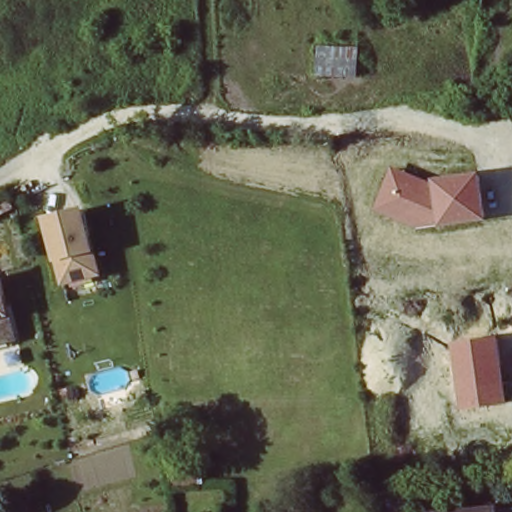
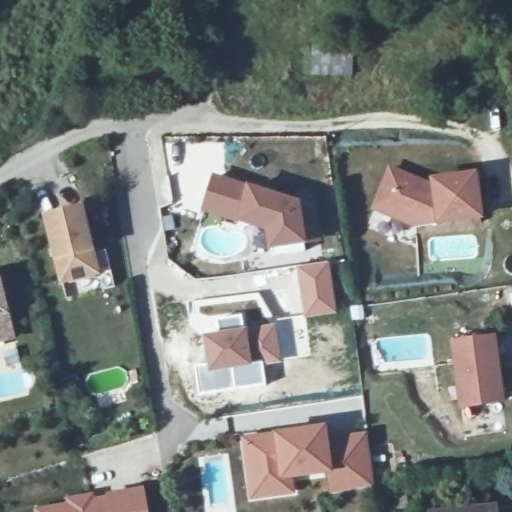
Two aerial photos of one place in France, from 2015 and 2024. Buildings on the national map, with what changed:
unchanged [(355,45),(354,77),(310,76),(310,44),(355,45)]
unchanged [(392,166),(427,181),(477,174),(484,220),(417,230),(373,209),(392,166)]
new [(320,241),(306,244),(303,245),(304,252),(269,256),(269,250),(266,231),(237,222),(203,210),(214,175),(248,186),(300,202),(318,209),(320,241)]
unchanged [(83,212),(96,277),(61,283),(48,219),(83,212)]
unchanged [(15,336),(0,339),(0,277),(10,317),(15,336)]
new [(221,315),(260,316),(258,364),(253,365),(254,397),(199,398),(198,362),(210,362),(211,331),(221,330),(221,315)]
unchanged [(499,336),(507,404),(461,410),(451,342),(499,336)]
new [(243,437),(275,433),(328,425),(329,437),(368,432),(375,485),(331,492),(328,476),(292,480),(298,493),(252,500),(243,437)]
new [(65,499),(93,495),(94,498),(105,497),(105,494),(143,487),(147,512),(34,512),(33,510),(65,505),(65,499)]
unchanged [(493,506),(494,512),(442,512),(447,512),(493,506)]

